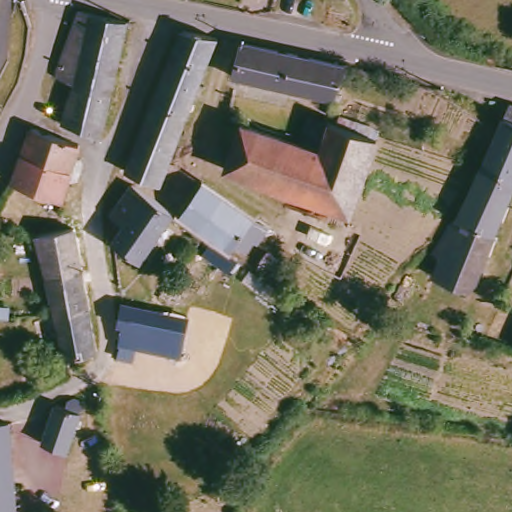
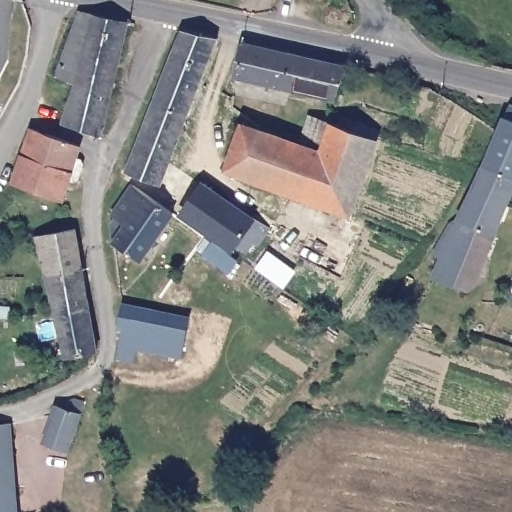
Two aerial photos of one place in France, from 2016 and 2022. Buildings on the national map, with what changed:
unchanged [(122,21),(95,130),(60,120),(69,81),(53,76),(70,10),(122,21)]
unchanged [(153,183),(125,173),(136,132),(176,31),(207,37),(153,183)]
unchanged [(335,95),(225,71),(235,43),(346,66),(335,95)]
unchanged [(496,121),(507,97),(512,99),(512,167),(481,155),(496,121)]
unchanged [(261,185),(219,170),(240,120),(280,134),(261,185)]
unchanged [(319,146),(327,122),(377,136),(345,217),(261,185),(280,134),(319,146)]
unchanged [(32,125),(80,144),(76,152),(80,162),(80,170),(75,176),(65,180),(55,201),(8,180),(32,125)]
unchanged [(512,176),(503,196),(468,182),(481,155),(512,167),(512,176)]
unchanged [(468,280),(431,264),(439,249),(431,244),(443,215),(452,219),(468,182),(503,196),(468,280)]
unchanged [(135,261),(109,242),(121,225),(114,219),(107,214),(127,184),(168,213),(135,261)]
unchanged [(195,184),(262,228),(251,246),(246,244),(240,251),(177,210),(195,184)]
unchanged [(30,229),(70,222),(92,337),(87,352),(60,365),(45,296),(30,229)]
unchanged [(293,279),(284,272),(263,260),(275,243),(295,256),(305,263),(293,279)]
unchanged [(120,358),(123,343),(120,342),(124,326),(120,325),(123,300),(191,313),(184,355),(137,346),(134,360),(120,358)]
unchanged [(57,406),(63,407),(68,396),(85,402),(65,451),(43,442),(57,406)]
unchanged [(14,512),(0,512),(0,419),(3,419),(7,417),(14,512)]

